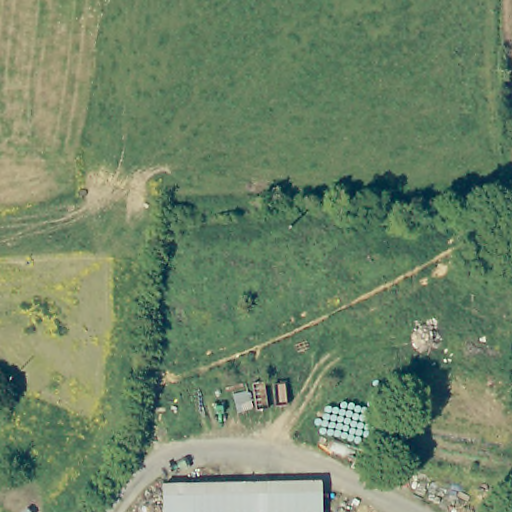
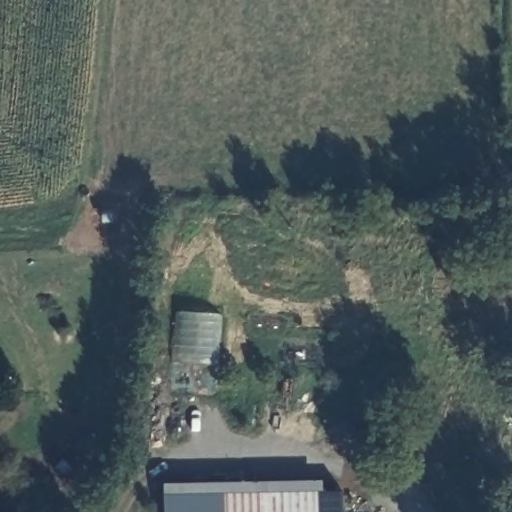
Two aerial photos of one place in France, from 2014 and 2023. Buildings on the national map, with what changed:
new [(175,311),(221,313),(217,367),(172,364),(175,311)]
demolished [(0,404),(0,392),(4,394),(0,404)]
unchanged [(324,484),(325,512),(165,512),(165,489),(324,484)]

